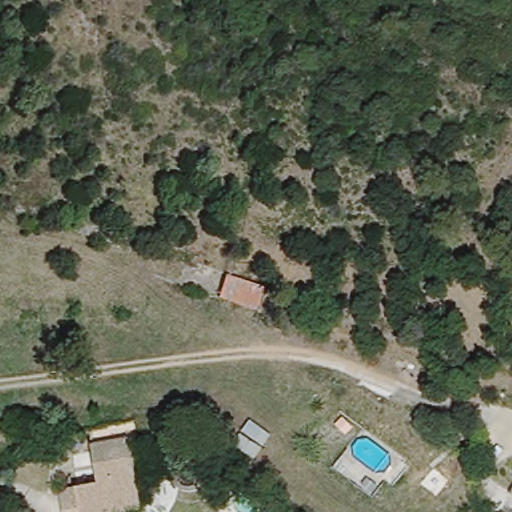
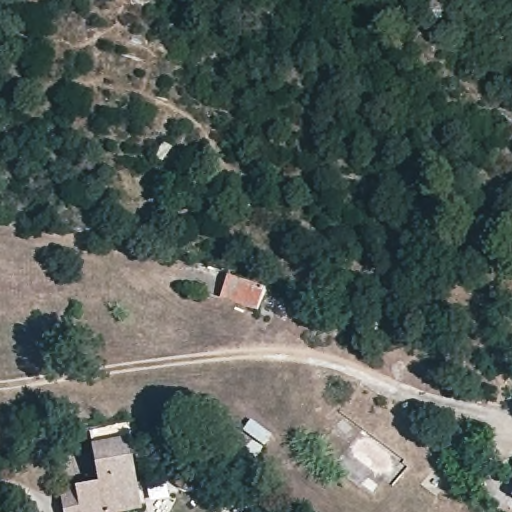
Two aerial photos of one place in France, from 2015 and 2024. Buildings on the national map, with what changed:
unchanged [(257,311),(220,298),(227,275),(265,289),(257,311)]
unchanged [(69,512),(66,497),(105,490),(95,434),(130,428),(146,512),(69,512)]
unchanged [(512,495),(512,500),(510,499),(512,495)]

